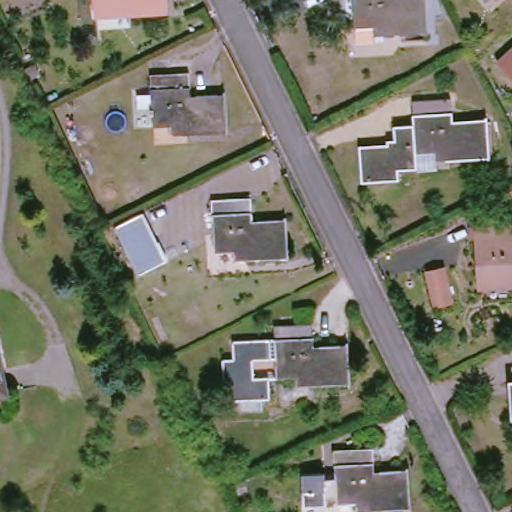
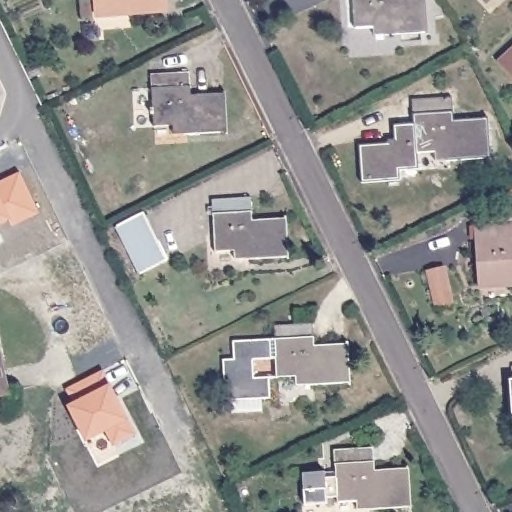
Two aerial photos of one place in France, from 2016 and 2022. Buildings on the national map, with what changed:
unchanged [(99,0),(173,0),(174,15),(119,18),(101,20),(100,9),(99,0)]
unchanged [(360,27),(358,0),(431,0),(434,34),(390,35),(379,36),(379,27),(360,27)]
unchanged [(503,0),(500,3),(497,0),(503,0)]
unchanged [(512,54),(512,72),(503,62),(512,54)]
unchanged [(178,130),(160,131),(156,80),(195,77),(196,100),(231,99),(233,137),(189,139),(179,140),(178,130)]
unchanged [(442,168),(423,169),(404,170),(405,180),(367,183),(365,146),(395,144),(395,147),(401,147),(400,126),(420,125),(418,101),(457,99),(459,121),(493,119),(495,158),(452,160),(442,161),(442,168)]
new [(22,172),(40,213),(13,226),(9,220),(0,224),(0,183),(22,172)]
unchanged [(240,251),(221,252),(217,200),(257,197),(258,221),(293,219),(295,257),(251,260),(240,260),(240,251)]
unchanged [(119,230),(149,215),(172,267),(142,280),(119,230)]
unchanged [(479,231),(512,229),(512,291),(483,293),(483,283),(479,231)]
unchanged [(435,307),(426,273),(444,268),(453,302),(435,307)]
unchanged [(301,382),(275,383),(276,403),(235,405),(234,385),(230,385),(229,365),(240,364),(239,346),(280,345),(280,330),(319,328),(320,351),(354,350),(356,388),(312,390),(302,391),(301,382)]
unchanged [(13,398),(0,401),(0,337),(13,398)]
new [(111,387),(107,390),(113,402),(118,400),(135,435),(114,445),(106,430),(86,440),(69,406),(75,404),(68,388),(102,370),(111,387)]
unchanged [(512,399),(512,419),(511,400),(512,399)]
unchanged [(344,503),(343,497),(333,498),(334,504),(310,505),(308,474),(331,472),(331,478),(341,478),(339,450),(379,448),(380,471),(415,469),(417,507),(373,510),(363,511),(362,502),(344,503)]

